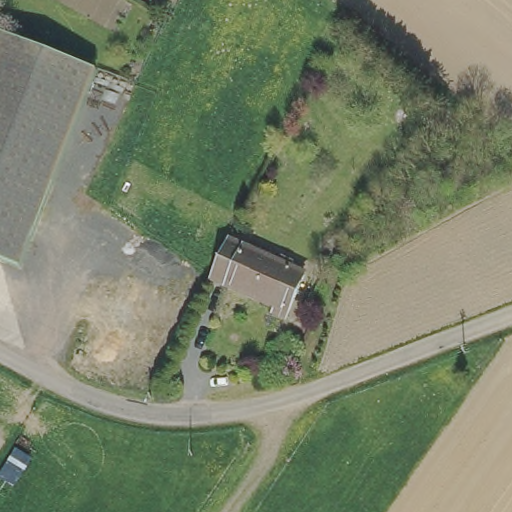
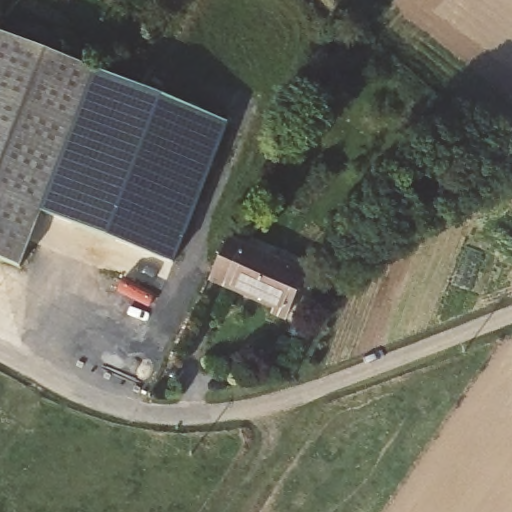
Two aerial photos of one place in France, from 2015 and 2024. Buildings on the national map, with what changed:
unchanged [(94,65),(53,171),(0,154),(0,29),(94,65)]
new [(229,121),(174,263),(38,210),(53,171),(94,65),(229,121)]
unchanged [(53,171),(19,262),(0,255),(0,154),(53,171)]
unchanged [(335,259),(323,248),(343,226),(355,236),(335,259)]
unchanged [(302,273),(285,314),(272,309),(274,304),(212,277),(227,241),(302,273)]

